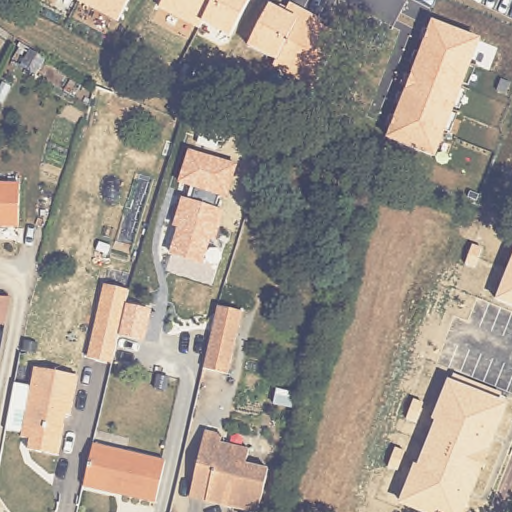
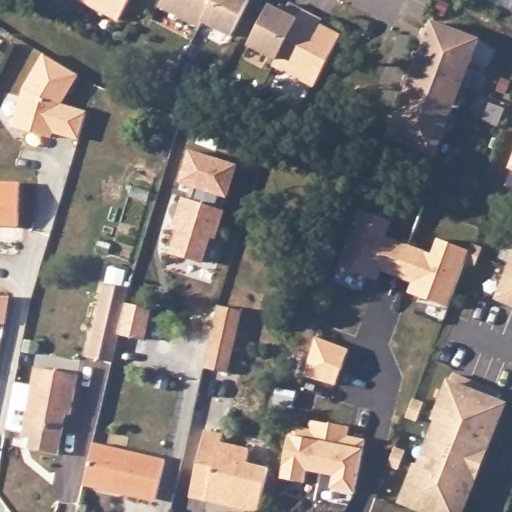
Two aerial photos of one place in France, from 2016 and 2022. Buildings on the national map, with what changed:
unchanged [(76,4),(78,0),(129,0),(119,21),(76,4)]
unchanged [(202,25),(200,31),(160,9),(164,0),(251,0),(230,38),(202,25)]
unchanged [(325,20),(321,25),(343,37),(322,82),(273,63),(277,57),(250,46),(269,3),(285,11),(289,4),(325,20)]
unchanged [(481,40),(437,157),(386,140),(431,21),(481,40)]
new [(22,89),(44,54),(79,75),(63,104),(87,110),(79,140),(52,132),(51,138),(12,126),(22,89)]
unchanged [(170,255),(177,230),(172,228),(181,199),(187,200),(191,187),(177,185),(188,150),(238,166),(230,199),(217,196),(215,207),(226,211),(217,240),(212,240),(204,264),(170,255)]
unchanged [(512,159),(512,171),(508,170),(512,159)]
unchanged [(17,226),(0,224),(0,183),(22,185),(17,226)]
new [(358,209),(392,221),(386,237),(431,254),(437,239),(469,249),(472,244),(483,247),(476,266),(465,263),(448,307),(408,293),(413,283),(381,271),(377,281),(338,266),(358,209)]
unchanged [(512,255),(512,306),(496,300),(512,255)]
unchanged [(88,355),(107,282),(132,288),(131,293),(124,315),(114,361),(88,355)]
unchanged [(4,327),(0,326),(0,301),(9,301),(4,327)]
new [(153,309),(145,340),(120,334),(124,315),(126,310),(127,303),(153,309)]
unchanged [(222,311),(247,318),(230,378),(205,373),(206,365),(222,311)]
new [(317,337),(349,349),(335,385),(303,375),(317,337)]
unchanged [(77,376),(70,415),(65,415),(57,456),(31,450),(33,437),(22,435),(35,368),(77,376)]
unchanged [(466,512),(415,512),(398,506),(412,463),(416,465),(436,420),(432,420),(452,375),(502,393),(498,400),(507,404),(466,512)]
new [(291,425),(308,427),(310,420),(350,427),(348,436),(366,440),(355,493),(332,488),(334,476),(307,471),(305,482),(280,479),(291,425)]
unchanged [(195,475),(205,432),(223,436),(222,443),(249,450),(246,465),(267,470),(258,512),(247,512),(205,501),(190,497),(195,475)]
unchanged [(165,455),(157,497),(120,490),(115,491),(82,485),(92,441),(165,455)]

